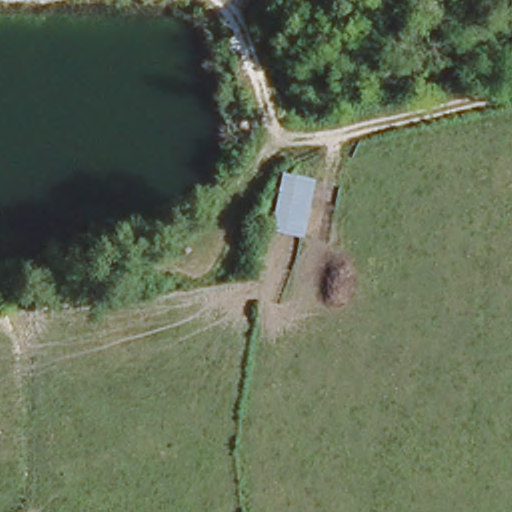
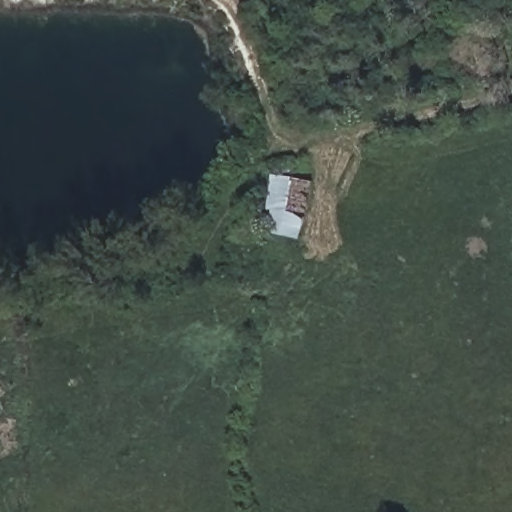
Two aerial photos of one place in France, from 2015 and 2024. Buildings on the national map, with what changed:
unchanged [(283,172),(315,179),(303,238),(269,231),(283,172)]

